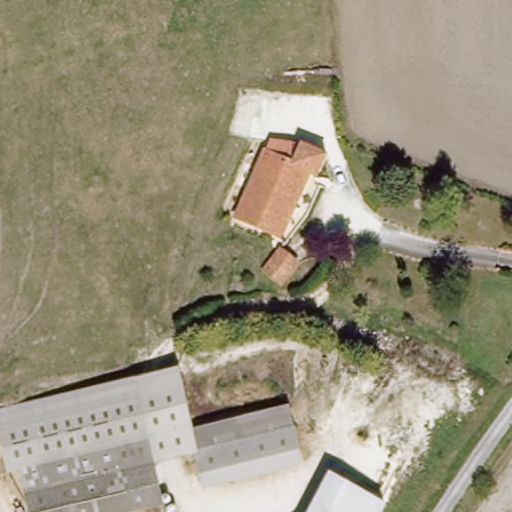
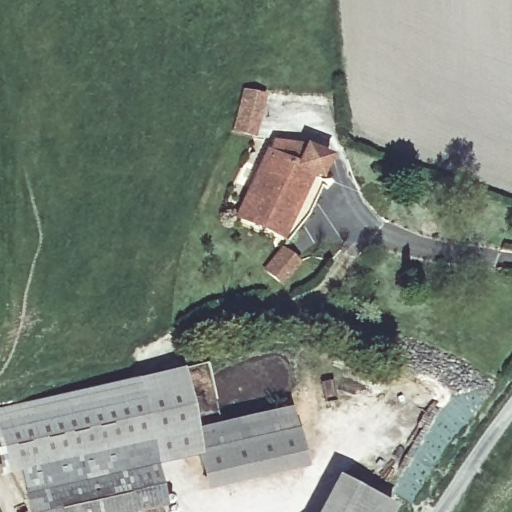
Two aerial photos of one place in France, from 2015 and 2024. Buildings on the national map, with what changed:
new [(258,136),(233,130),(243,89),(268,94),(258,136)]
unchanged [(231,219),(264,156),(277,160),(282,144),(299,145),(321,153),(313,175),(303,172),(276,237),(231,219)]
unchanged [(282,240),(300,253),(295,261),(285,275),(266,261),(272,252),(282,240)]
unchanged [(198,455),(154,466),(119,475),(113,450),(21,473),(19,467),(6,470),(0,442),(0,407),(177,370),(198,455)]
unchanged [(304,465),(205,487),(198,455),(192,430),(290,406),(304,465)]
unchanged [(113,450),(119,475),(154,466),(164,507),(143,512),(30,512),(21,473),(113,450)]
unchanged [(385,512),(310,512),(330,475),(388,507),(385,512)]

